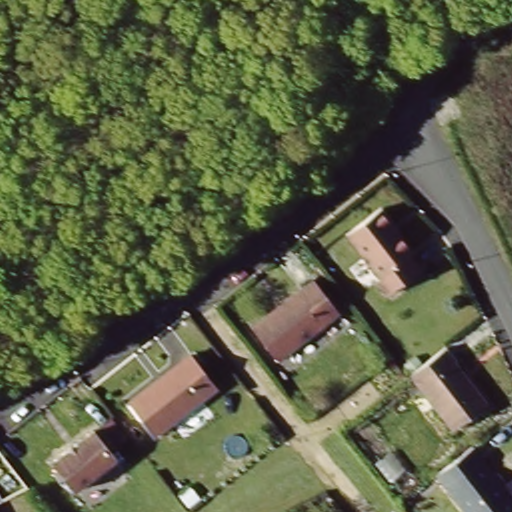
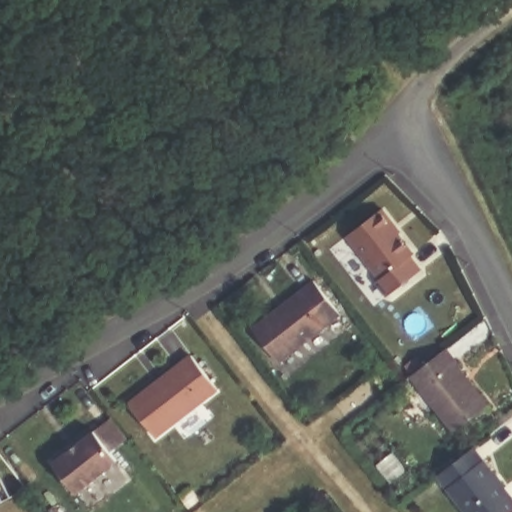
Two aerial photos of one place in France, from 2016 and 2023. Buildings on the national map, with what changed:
unchanged [(421,274),(386,298),(375,280),(379,277),(350,234),(385,210),(414,253),(409,256),(421,274)]
unchanged [(335,320),(282,361),(255,325),(310,283),(335,320)]
unchanged [(450,351),(469,378),(466,379),(489,412),(453,437),(412,378),(450,351)]
unchanged [(193,354),(216,386),(155,431),(132,400),(193,354)]
unchanged [(91,437),(112,467),(72,495),(52,465),(91,437)]
unchanged [(0,444),(1,446),(2,448),(0,450),(0,444)]
unchanged [(477,450),(512,502),(512,512),(464,512),(439,476),(477,450)]

